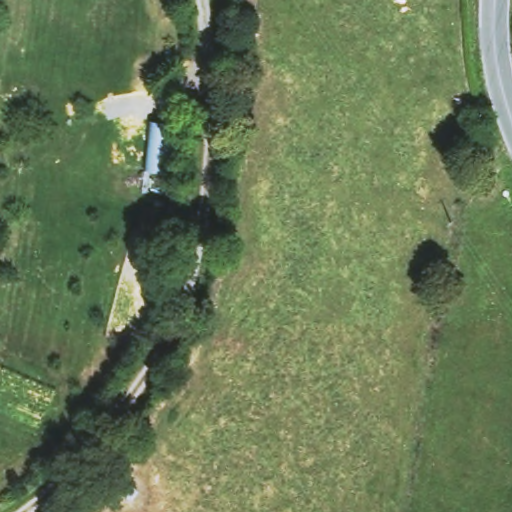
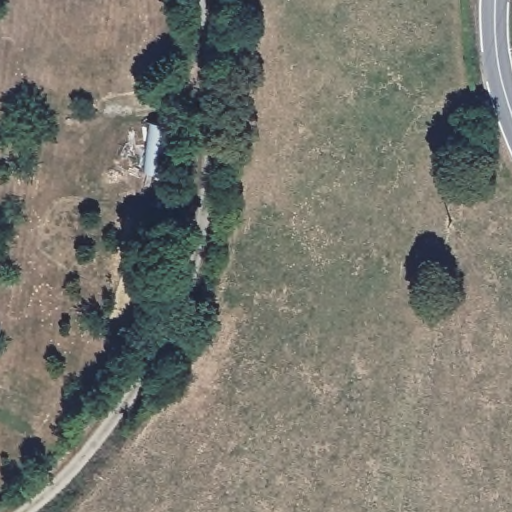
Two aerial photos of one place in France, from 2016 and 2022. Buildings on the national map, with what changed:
unchanged [(151,123),(177,127),(172,178),(145,175),(151,123)]

